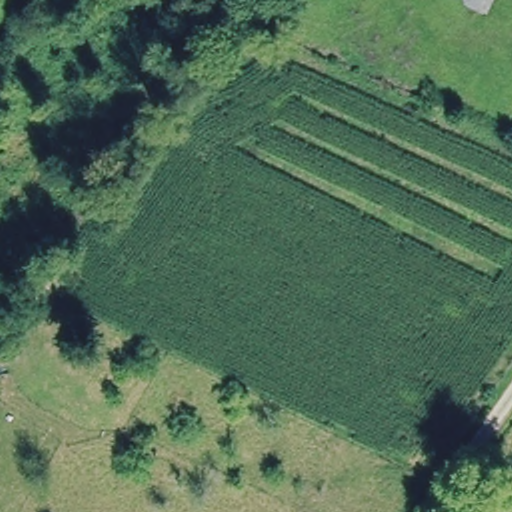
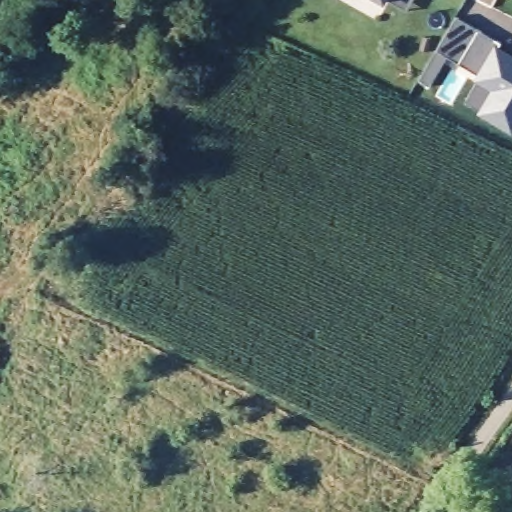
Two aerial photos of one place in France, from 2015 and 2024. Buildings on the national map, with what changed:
unchanged [(410,0),(407,7),(394,0),(410,0)]
new [(458,16),(497,40),(495,44),(512,54),(512,133),(478,113),(481,109),(466,101),(478,82),(474,80),(478,74),(448,55),(430,85),(420,78),(458,16)]

